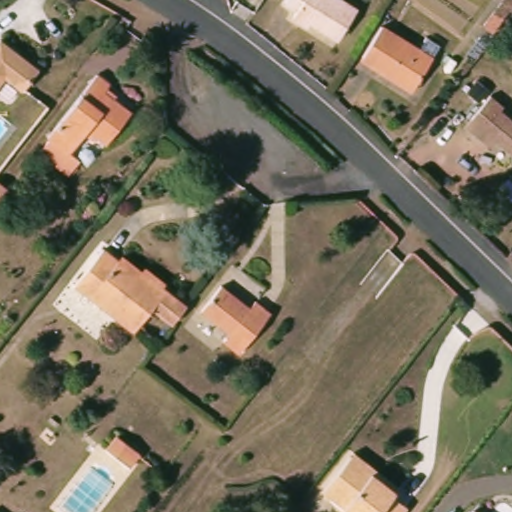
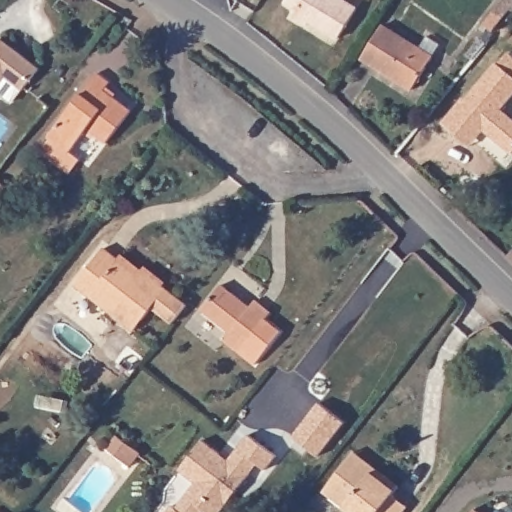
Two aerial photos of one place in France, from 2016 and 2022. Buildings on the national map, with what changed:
unchanged [(345,35),(317,18),(315,22),(301,13),(304,6),(295,0),(353,0),(362,6),(345,35)]
unchanged [(490,23),(482,16),(494,0),(507,0),(508,0),(490,23)]
unchanged [(383,33),(417,53),(426,41),(439,49),(412,94),(363,64),(383,33)]
unchanged [(21,89),(4,75),(0,80),(0,39),(37,67),(21,89)]
unchanged [(114,83),(108,91),(137,111),(112,143),(92,129),(76,151),(84,158),(73,173),(41,150),(100,74),(114,83)]
unchanged [(499,101),(512,111),(510,114),(512,116),(512,149),(507,144),(502,150),(476,129),(481,123),(499,101)]
unchanged [(0,194),(0,173),(11,180),(0,194)]
unchanged [(102,250),(146,282),(151,275),(187,303),(172,323),(152,307),(136,329),(77,285),(102,250)]
unchanged [(225,283),(255,304),(262,294),(278,304),(244,351),(228,339),(236,330),(206,308),(225,283)]
new [(345,421),(319,455),(292,436),(318,402),(345,421)]
unchanged [(119,435),(142,453),(132,466),(109,449),(119,435)]
new [(276,454),(266,469),(258,463),(219,512),(208,512),(204,509),(201,512),(166,512),(172,504),(176,508),(195,482),(181,469),(202,439),(229,459),(248,435),(276,454)]
unchanged [(357,451),(386,474),(403,486),(393,498),(410,511),(409,512),(357,512),(327,488),(352,458),(357,451)]
unchanged [(492,512),(474,512),(481,504),(492,512)]
unchanged [(0,509),(4,512),(0,512),(0,509)]

